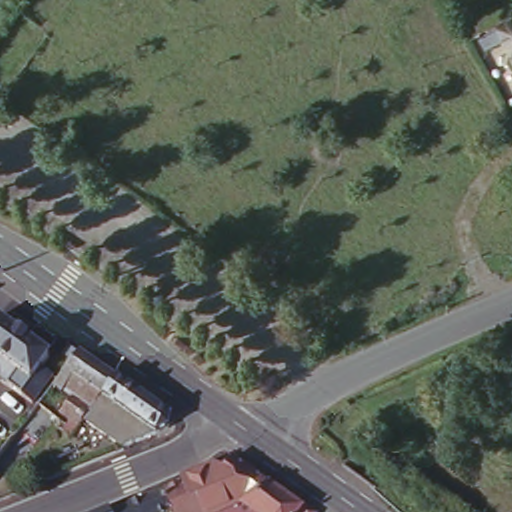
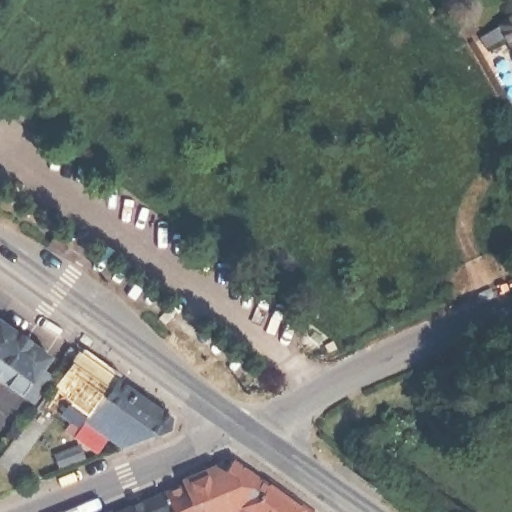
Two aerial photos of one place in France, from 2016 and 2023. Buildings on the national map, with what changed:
unchanged [(512,23),(512,60),(496,34),(512,23)]
unchanged [(49,349),(41,361),(52,370),(31,397),(7,380),(0,375),(0,314),(49,349)]
unchanged [(81,414),(78,418),(65,409),(74,394),(67,389),(62,395),(48,386),(74,350),(175,419),(172,426),(124,445),(81,414)]
unchanged [(13,437),(0,455),(0,427),(13,437)]
unchanged [(163,512),(156,491),(206,470),(222,480),(235,458),(304,500),(296,512),(163,512)]
unchanged [(163,512),(115,512),(114,508),(156,491),(163,512)]
unchanged [(114,508),(115,512),(97,512),(112,505),(114,508)]

